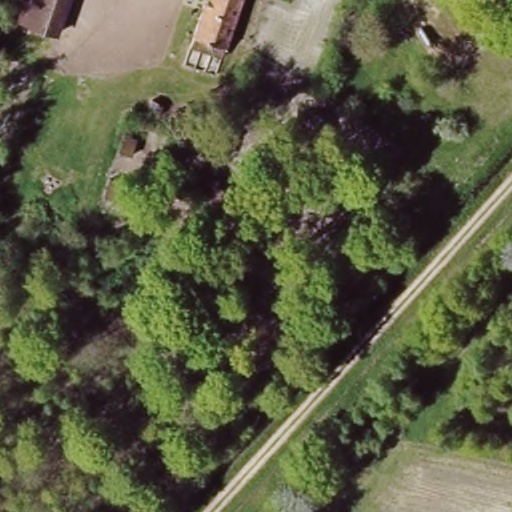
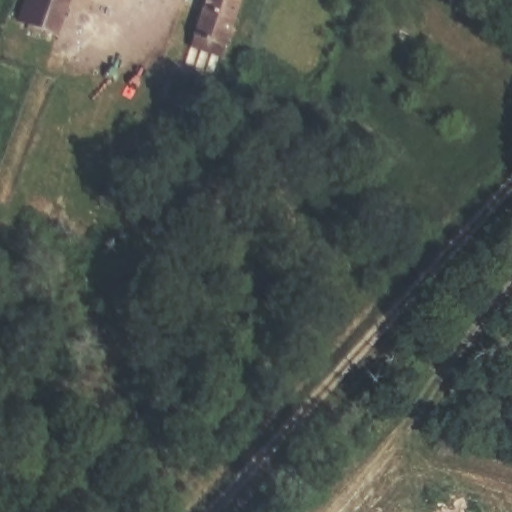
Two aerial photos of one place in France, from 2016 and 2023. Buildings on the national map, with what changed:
unchanged [(20,29),(29,0),(73,0),(60,42),(20,29)]
unchanged [(190,45),(204,0),(264,0),(257,20),(234,14),(221,57),(190,45)]

